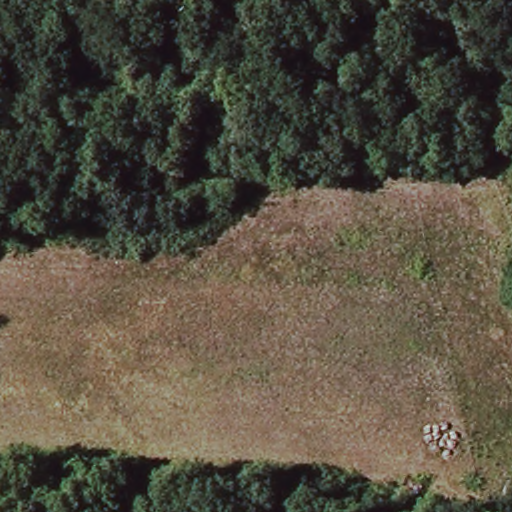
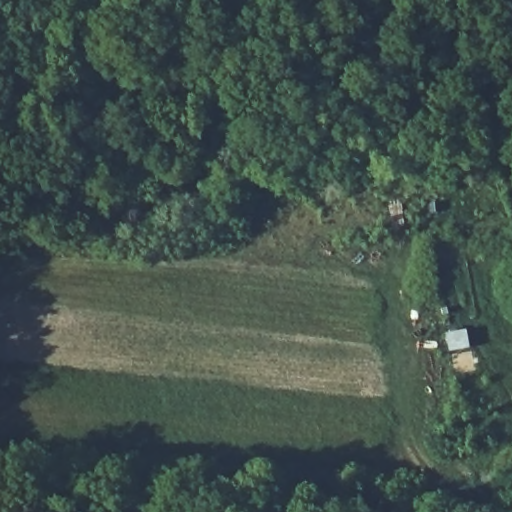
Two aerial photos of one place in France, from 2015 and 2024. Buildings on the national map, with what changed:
[]

